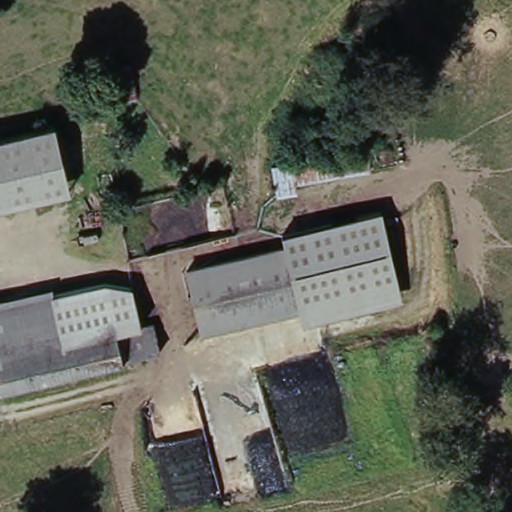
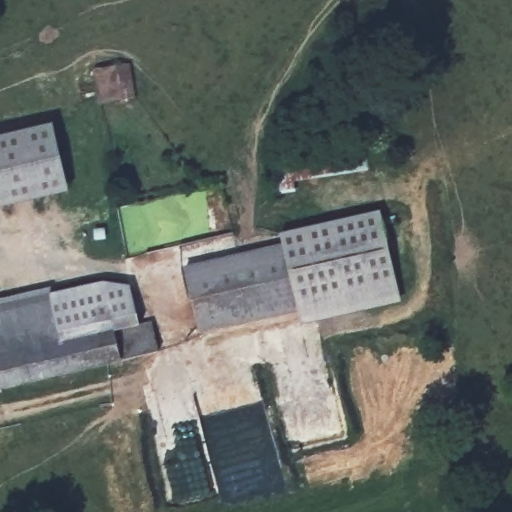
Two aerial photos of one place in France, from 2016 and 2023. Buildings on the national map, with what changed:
unchanged [(133,63),(138,98),(102,103),(97,68),(133,63)]
unchanged [(74,197),(0,214),(0,144),(59,130),(74,197)]
unchanged [(371,151),(375,182),(280,200),(275,168),(371,151)]
unchanged [(286,251),(283,239),(383,215),(400,286),(300,309),(286,251)]
unchanged [(286,251),(300,309),(204,332),(190,274),(286,251)]
unchanged [(107,284),(135,292),(141,327),(65,345),(54,298),(107,284)]
unchanged [(65,345),(0,361),(0,311),(54,298),(65,345)]
unchanged [(154,324),(162,355),(0,395),(0,361),(65,345),(154,324)]

